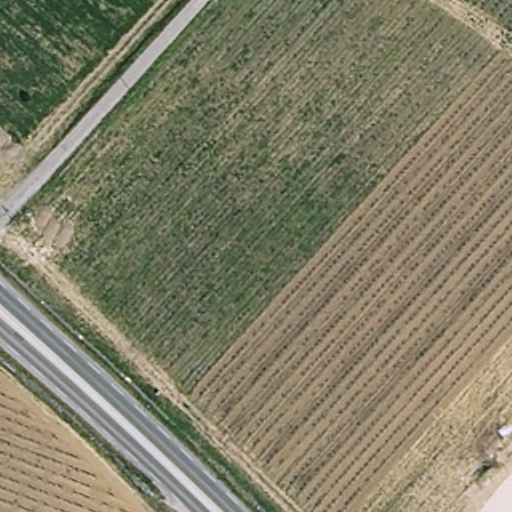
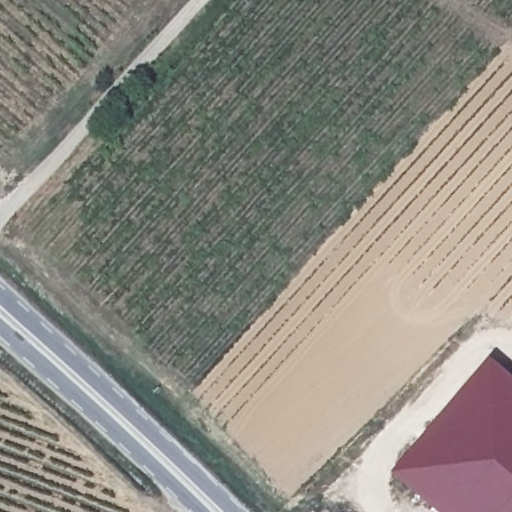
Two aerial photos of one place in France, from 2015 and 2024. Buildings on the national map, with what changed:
new [(395,476),(495,361),(512,376),(512,512),(437,512),(395,476)]

